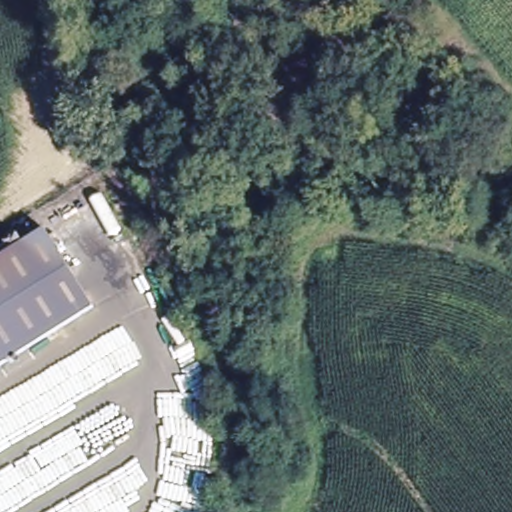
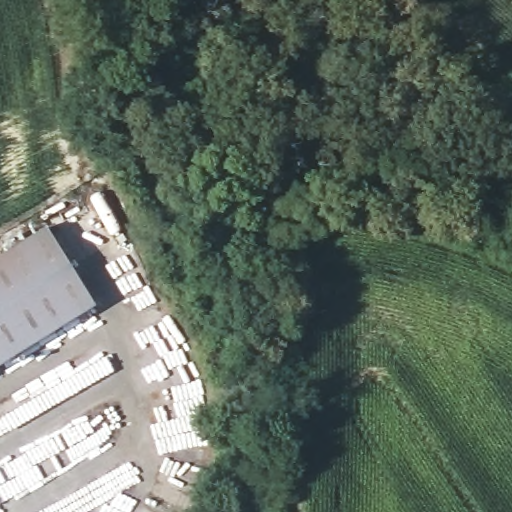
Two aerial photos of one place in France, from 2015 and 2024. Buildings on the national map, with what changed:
unchanged [(97,308),(0,369),(0,265),(51,233),(97,308)]

